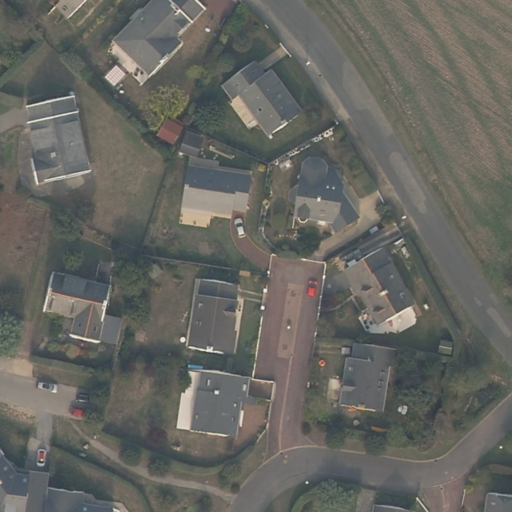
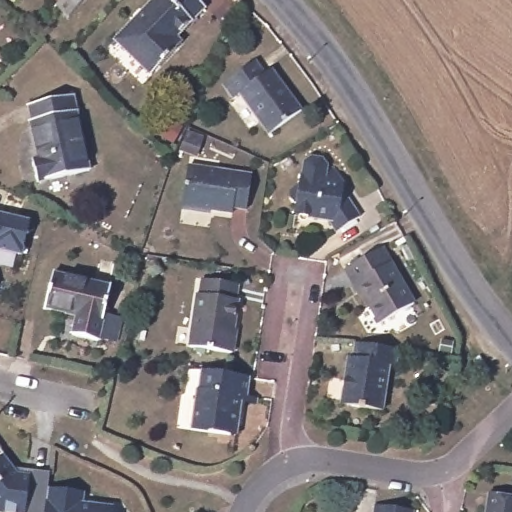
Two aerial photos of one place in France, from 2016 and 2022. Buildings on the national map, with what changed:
unchanged [(72,17),(58,5),(62,0),(88,0),(72,17)]
unchanged [(172,30),(178,35),(149,66),(114,32),(145,0),(199,0),(200,1),(172,30)]
unchanged [(252,58),(262,71),(268,67),(300,108),(269,132),(238,92),(233,95),(222,82),(252,58)]
unchanged [(37,179),(33,159),(40,157),(32,120),(34,119),(30,105),(74,94),(90,167),(37,179)]
unchanged [(179,152),(185,139),(187,135),(201,141),(199,146),(192,158),(179,152)]
unchanged [(357,214),(335,228),(327,217),(293,211),(295,200),(288,195),(290,186),(297,182),(300,172),(301,172),(303,159),(310,154),(321,156),(325,163),(325,165),(333,166),(341,181),(340,187),(350,201),(357,214)]
unchanged [(180,208),(180,202),(187,163),(249,173),(244,207),(232,205),(231,210),(209,207),(207,212),(180,208)]
new [(23,255),(0,251),(0,212),(30,219),(23,255)]
unchanged [(355,287),(346,272),(383,250),(415,306),(380,325),(363,296),(361,297),(355,287)]
unchanged [(95,335),(69,329),(73,311),(42,303),(50,267),(107,281),(95,335)]
unchanged [(230,356),(187,348),(195,297),(199,297),(201,282),(234,286),(231,302),(235,303),(230,339),(232,339),(230,356)]
unchanged [(396,351),(392,369),(387,368),(379,414),(340,407),(347,361),(352,362),(355,345),(396,351)]
unchanged [(238,412),(234,438),(194,432),(199,393),(202,393),(205,372),(249,378),(245,399),(244,413),(238,412)]
unchanged [(1,456),(14,469),(49,473),(48,488),(82,493),(81,504),(113,507),(113,512),(0,512),(0,455),(1,456)]
unchanged [(485,509),(487,493),(512,496),(512,512),(485,512),(485,510),(485,509)]
unchanged [(378,512),(379,503),(415,509),(415,512),(378,512)]

